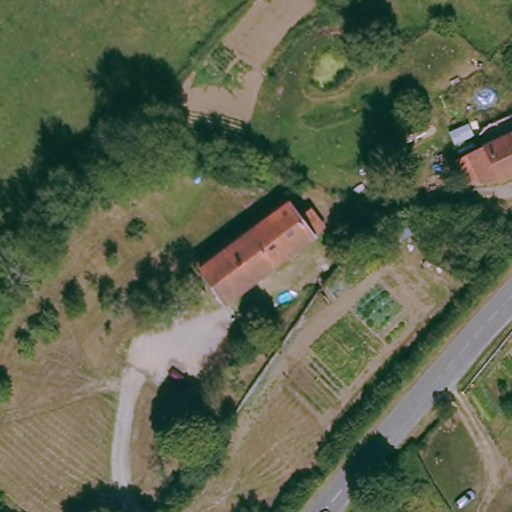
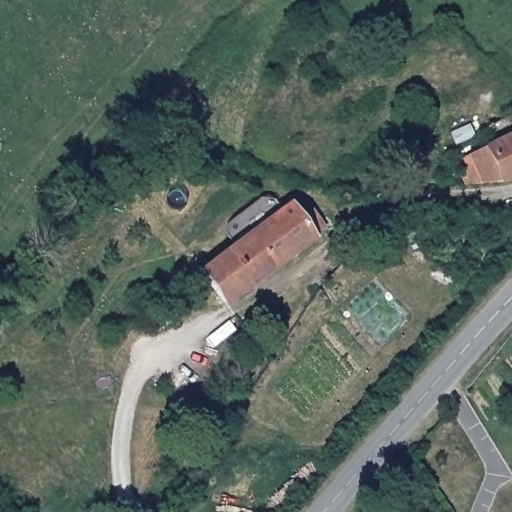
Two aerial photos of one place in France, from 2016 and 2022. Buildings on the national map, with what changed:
unchanged [(502,182),(501,181),(484,184),(465,185),(460,160),(512,135),(512,177),(502,182)]
unchanged [(289,200),(302,216),(312,208),(327,226),(316,235),(319,238),(225,309),(197,271),(289,200)]

